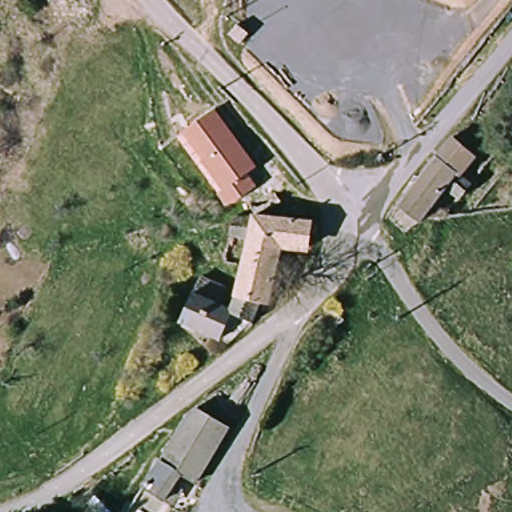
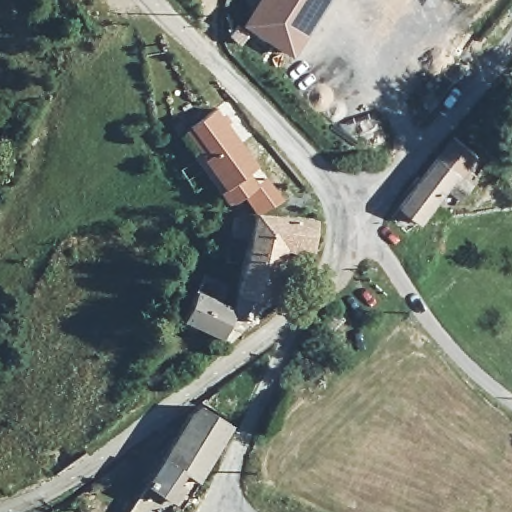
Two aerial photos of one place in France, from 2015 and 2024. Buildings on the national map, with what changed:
new [(259,0),(330,0),(296,56),(244,23),(259,0)]
demolished [(231,34),(241,19),(257,30),(246,46),(231,34)]
unchanged [(258,167),(250,173),(258,187),(229,207),(219,192),(224,189),(183,132),(216,110),(258,167)]
unchanged [(398,201),(437,156),(452,135),(481,159),(465,179),(471,184),(459,199),(450,192),(428,219),(398,201)]
unchanged [(257,215),(323,225),(315,250),(292,246),(275,302),(264,298),(257,317),(235,308),(223,341),(190,329),(203,297),(220,304),(245,242),(234,236),(237,229),(252,231),(257,215)]
unchanged [(162,497),(144,482),(201,411),(226,427),(227,427),(224,432),(187,487),(180,480),(162,497)]

